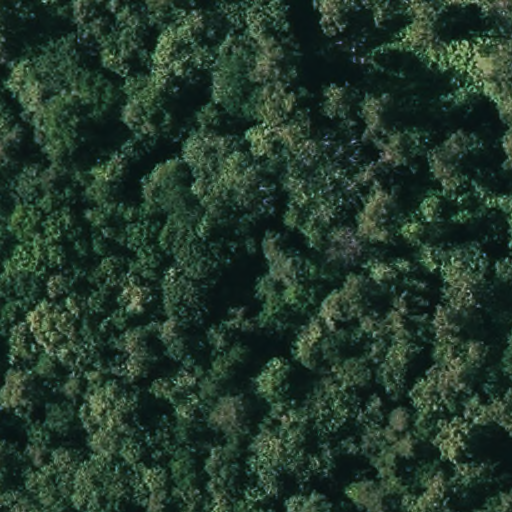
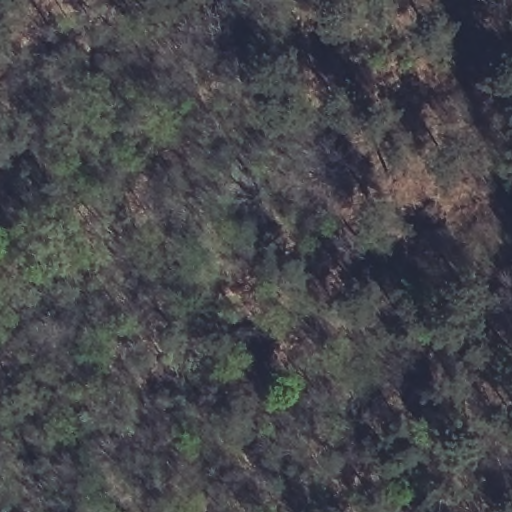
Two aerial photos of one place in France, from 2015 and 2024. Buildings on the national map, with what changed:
[]

